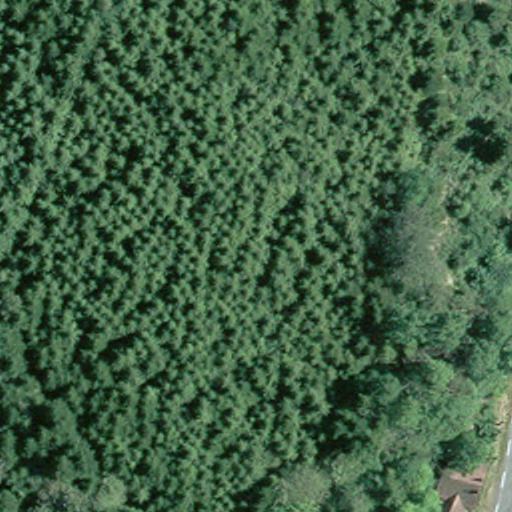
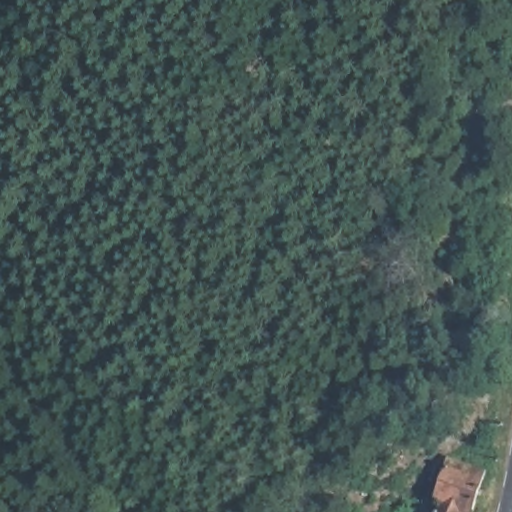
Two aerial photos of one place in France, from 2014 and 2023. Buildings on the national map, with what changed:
unchanged [(447,459),(484,469),(472,507),(464,506),(462,512),(415,512),(420,496),(434,500),(447,459)]

